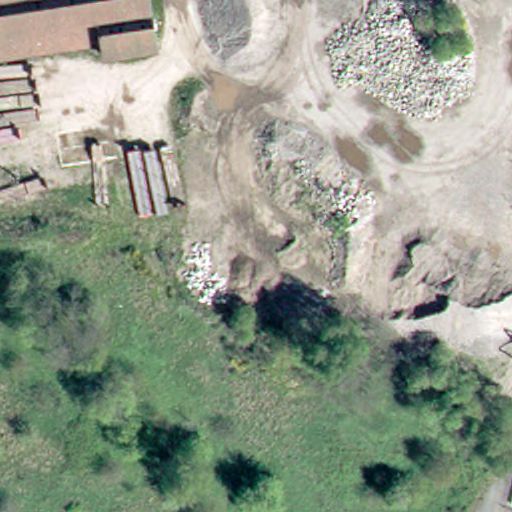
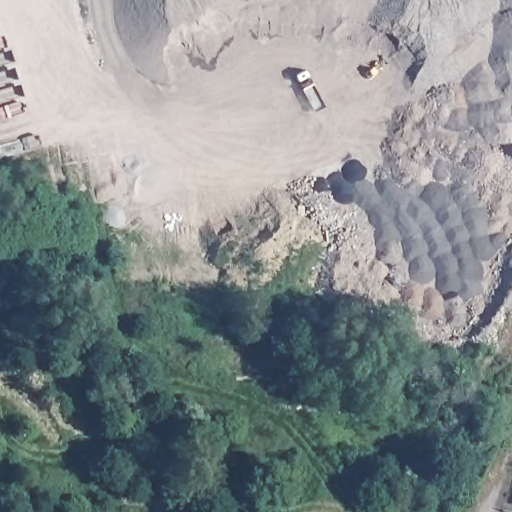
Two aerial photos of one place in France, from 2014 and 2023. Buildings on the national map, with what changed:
demolished [(157,50),(105,59),(104,47),(0,63),(0,0),(149,0),(157,50)]

